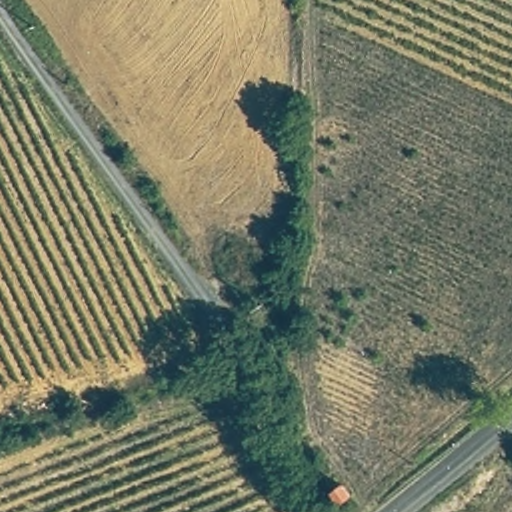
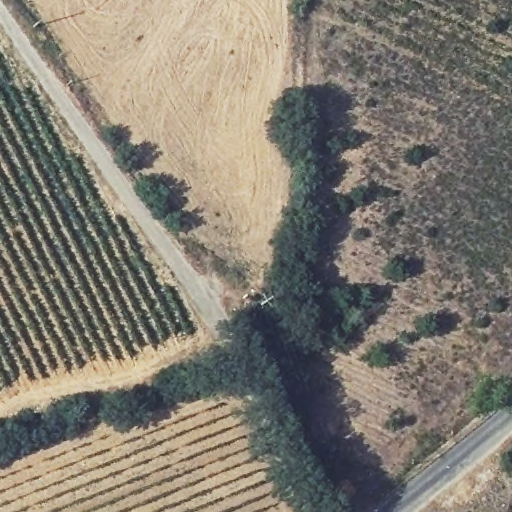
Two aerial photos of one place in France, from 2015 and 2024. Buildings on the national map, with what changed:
[]

